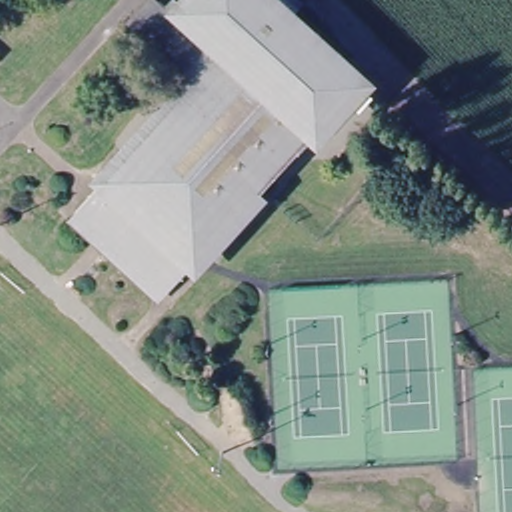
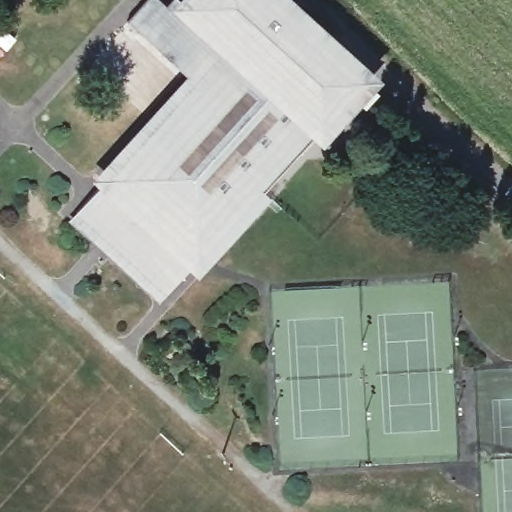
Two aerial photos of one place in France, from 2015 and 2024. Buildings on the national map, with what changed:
unchanged [(293,1),(285,10),(356,76),(160,292),(70,210),(187,80),(129,25),(151,0),(155,0),(169,12),(180,0),(291,0),(293,1)]
unchanged [(160,292),(151,299),(61,220),(70,210),(160,292)]

